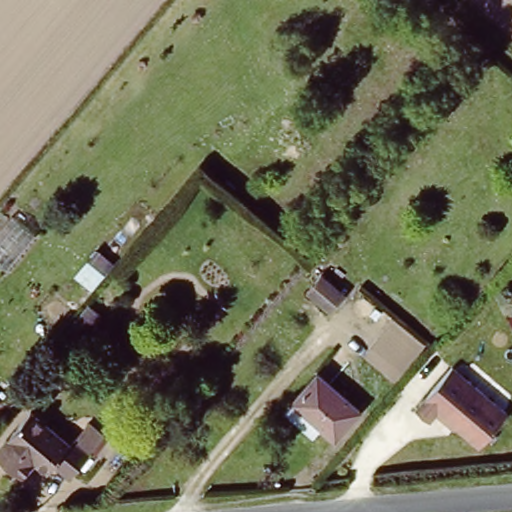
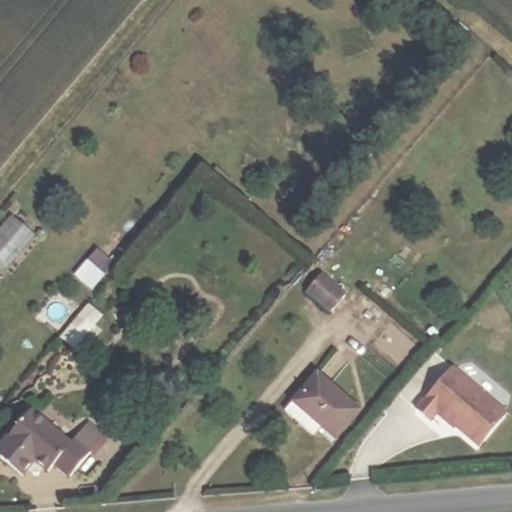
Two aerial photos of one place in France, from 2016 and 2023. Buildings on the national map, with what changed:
unchanged [(336,292),(317,316),(301,302),(321,280),(336,292)]
unchanged [(509,406),(480,441),(444,411),(438,417),(424,407),(459,367),(509,406)]
unchanged [(296,399),(318,373),(362,409),(341,436),(326,423),(321,429),(314,424),(319,417),(296,399)]
unchanged [(69,471),(55,458),(48,466),(36,455),(23,471),(0,451),(0,446),(32,407),(70,437),(76,430),(89,417),(92,420),(103,428),(87,447),(88,448),(69,471)]

